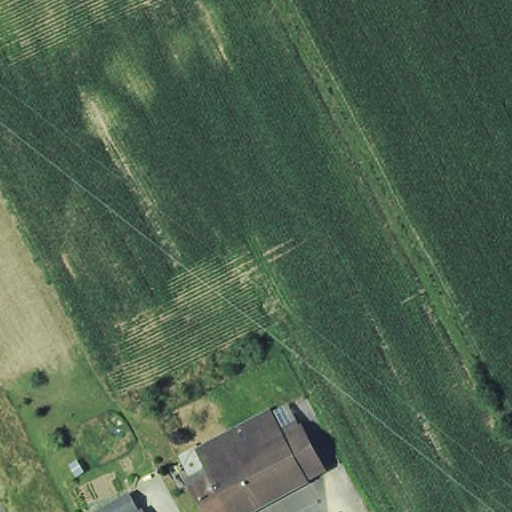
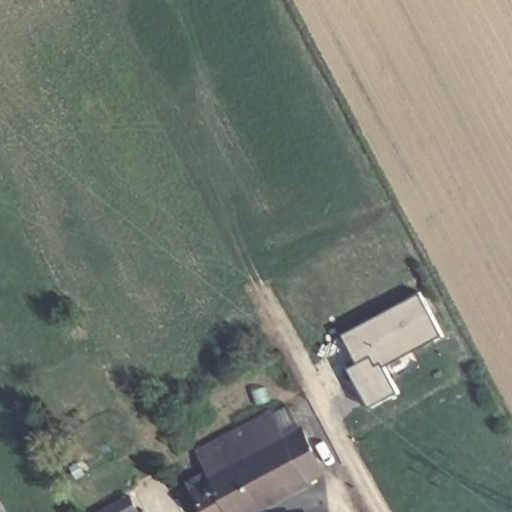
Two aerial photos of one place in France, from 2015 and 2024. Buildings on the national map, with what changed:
new [(359,367),(366,365),(348,335),(425,292),(451,337),(390,365),(404,392),(378,404),(359,367)]
unchanged [(198,453),(268,416),(279,440),(211,475),(198,453)]
unchanged [(211,480),(211,475),(279,440),(292,462),(281,439),(296,431),(309,454),(310,453),(321,475),(303,485),(250,512),(204,512),(193,490),(211,480)]

